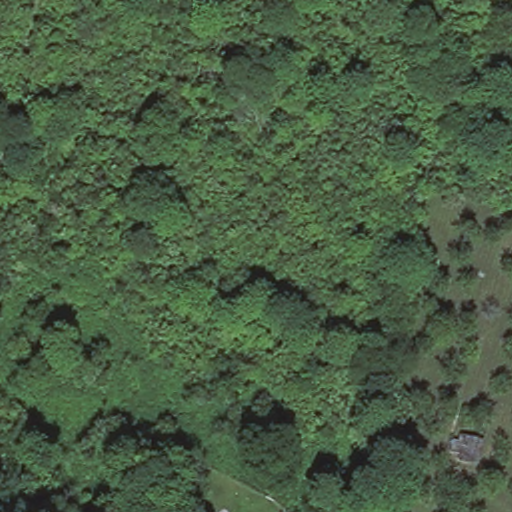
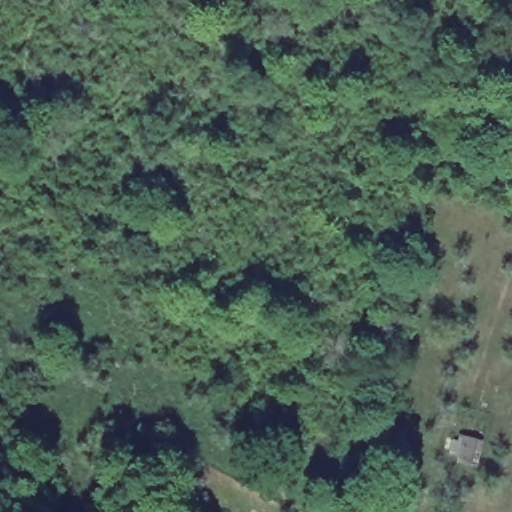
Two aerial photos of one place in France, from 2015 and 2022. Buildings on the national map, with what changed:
unchanged [(462,467),(450,464),(451,461),(456,437),(469,441),(475,442),(470,462),(467,469),(462,467)]

